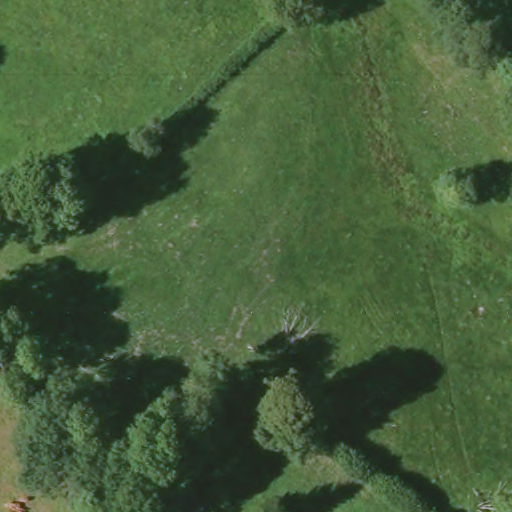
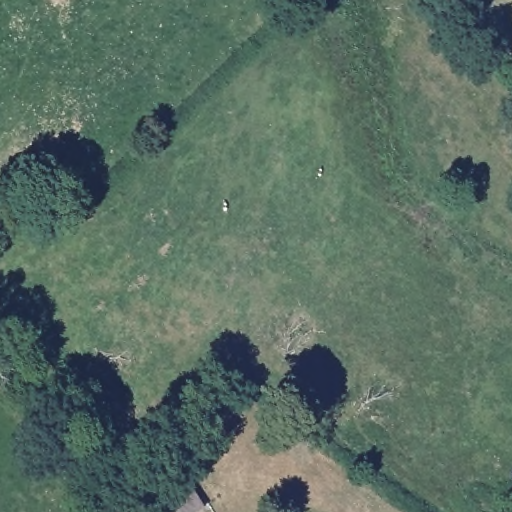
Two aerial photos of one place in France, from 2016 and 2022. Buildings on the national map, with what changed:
unchanged [(146,498),(189,473),(206,508),(200,512),(153,512),(146,498)]

